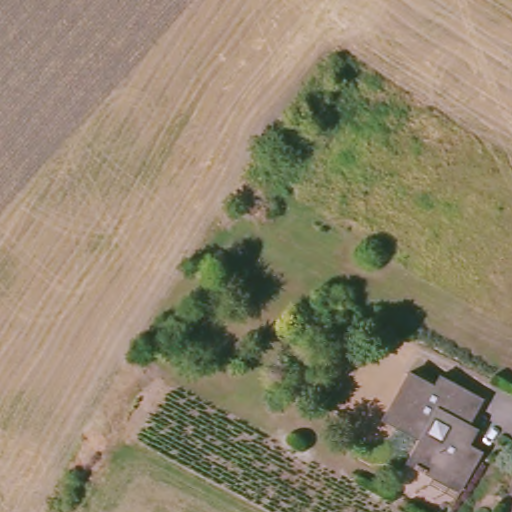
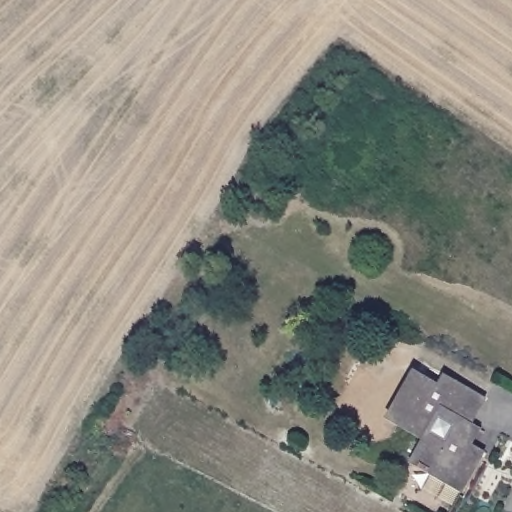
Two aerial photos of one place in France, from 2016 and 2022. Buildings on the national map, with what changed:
unchanged [(397,393),(406,377),(424,388),(432,374),(478,400),(464,425),(486,437),(479,450),(390,404),(397,393)]
unchanged [(420,439),(382,418),(390,404),(479,450),(468,470),(417,443),(420,439)]
unchanged [(456,490),(405,463),(417,443),(468,470),(456,490)]

